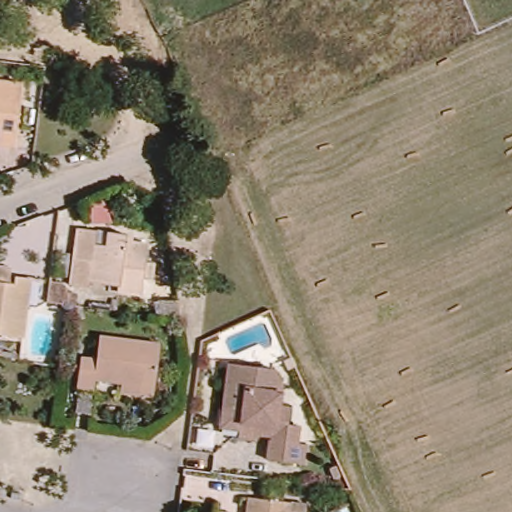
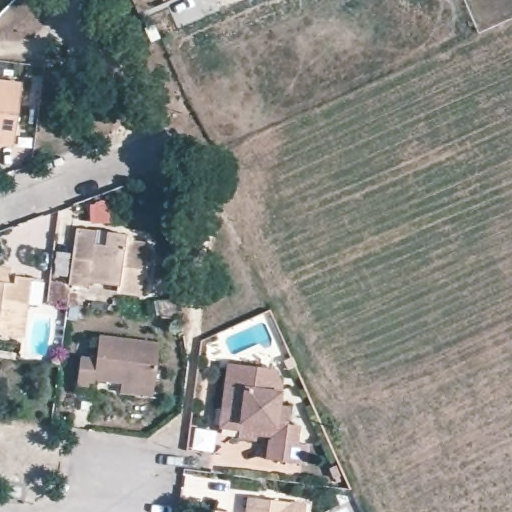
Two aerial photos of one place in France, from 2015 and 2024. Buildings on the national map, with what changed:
unchanged [(24,85),(15,147),(0,145),(0,82),(24,85)]
unchanged [(129,237),(137,238),(136,248),(149,249),(147,268),(152,268),(151,284),(142,283),(141,296),(115,293),(116,287),(88,283),(88,288),(68,285),(76,229),(97,232),(95,248),(108,249),(110,234),(129,237)]
unchanged [(14,264),(13,272),(22,273),(37,275),(28,335),(0,330),(0,262),(14,264)]
unchanged [(154,344),(148,399),(115,395),(117,384),(94,382),(93,392),(75,388),(77,357),(94,357),(95,336),(154,344)]
unchanged [(289,436),(261,433),(259,440),(238,438),(239,430),(239,427),(219,424),(221,404),(227,361),(272,367),(281,385),(280,406),(291,408),(290,424),(299,424),(297,444),(305,444),(302,466),(271,462),(273,441),(288,442),(289,436)]
unchanged [(151,416),(117,412),(118,401),(152,405),(151,416)]
unchanged [(301,504),(300,512),(240,512),(241,500),(301,504)]

